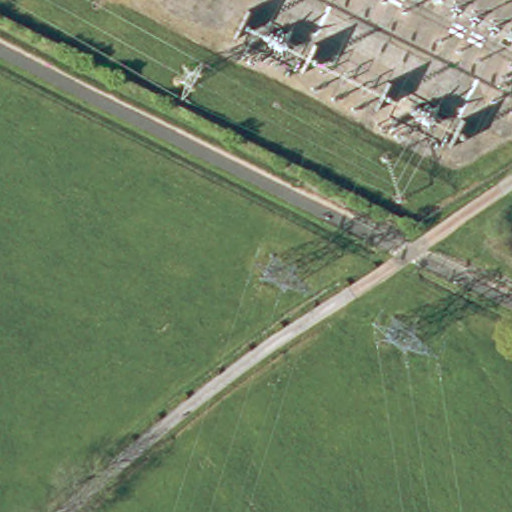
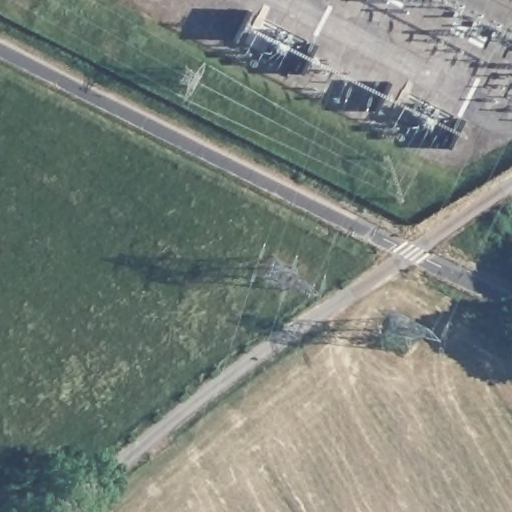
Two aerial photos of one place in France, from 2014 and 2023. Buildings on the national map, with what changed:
[]

